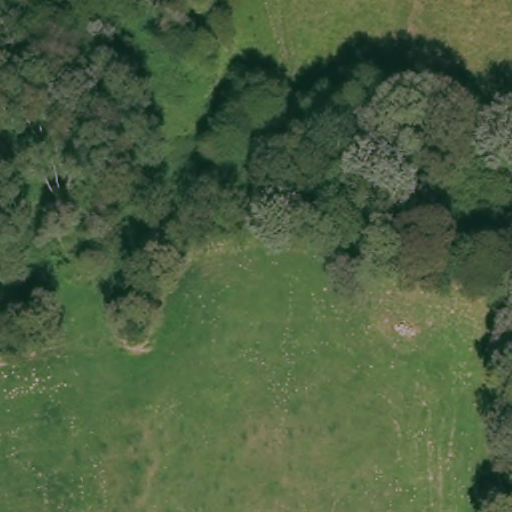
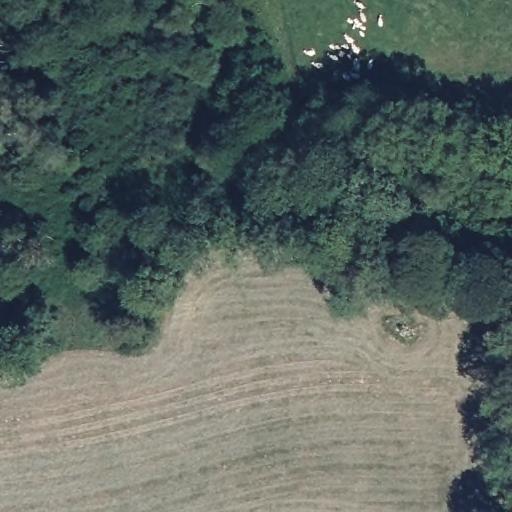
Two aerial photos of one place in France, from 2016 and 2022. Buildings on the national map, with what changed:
[]

